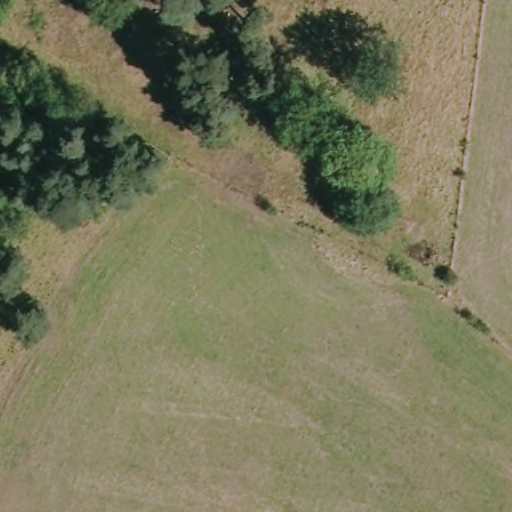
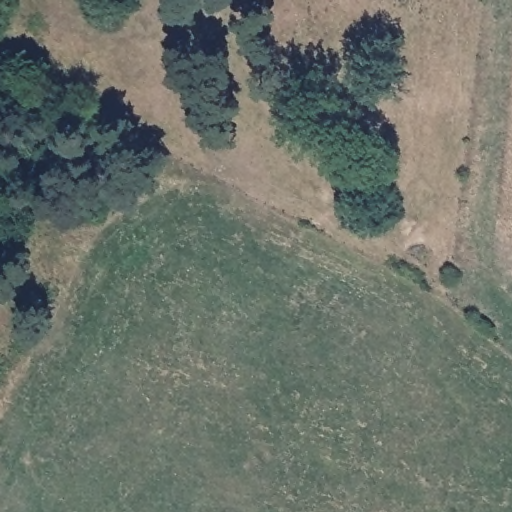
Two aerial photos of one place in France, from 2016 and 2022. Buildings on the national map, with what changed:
[]

